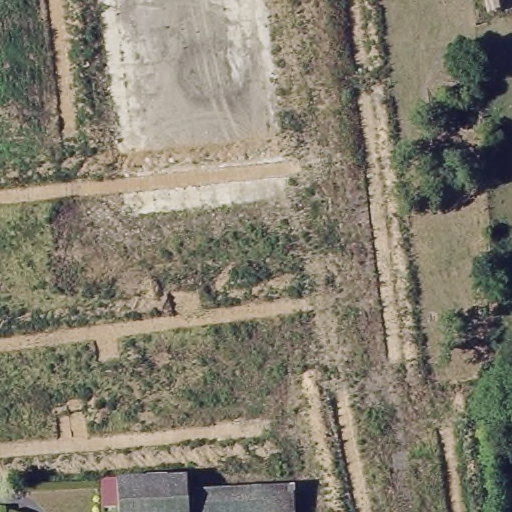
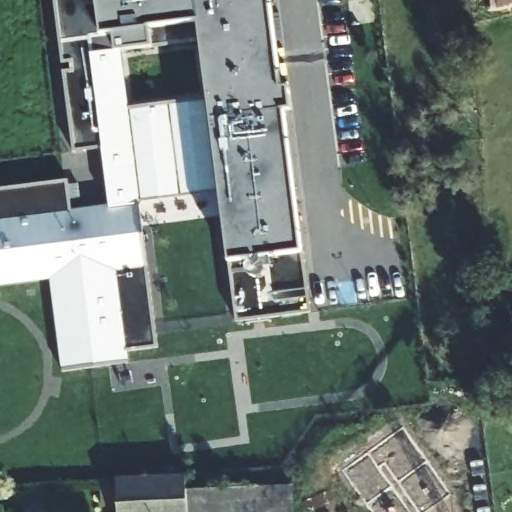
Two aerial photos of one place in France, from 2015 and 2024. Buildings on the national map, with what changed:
new [(128,364),(62,372),(50,278),(0,285),(0,189),(70,181),(73,212),(110,207),(102,150),(73,152),(63,71),(71,70),(70,64),(62,65),(55,0),(87,0),(87,2),(107,0),(271,0),(283,87),(290,87),(292,108),(286,109),(311,312),(237,321),(220,191),(140,201),(158,347),(125,350),(128,364)]
demolished [(354,237),(355,261),(341,262),(340,237),(354,237)]
new [(450,495),(453,512),(373,512),(343,471),(404,426),(450,495)]
unchanged [(182,485),(185,512),(118,512),(117,503),(100,504),(99,474),(115,473),(181,470),(182,485)]
demolished [(373,474),(378,512),(337,512),(332,479),(373,474)]
unchanged [(288,479),(290,512),(185,512),(182,485),(200,484),(288,479)]

